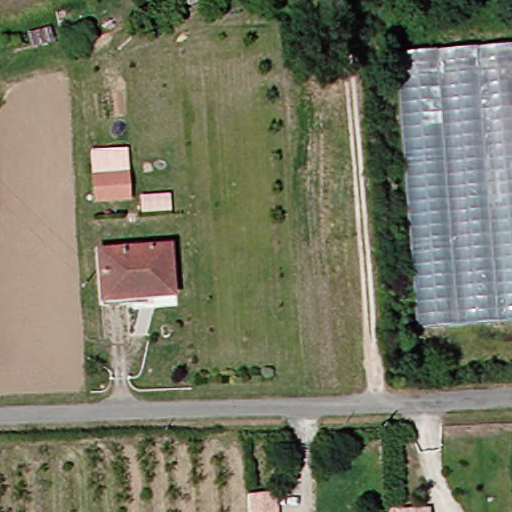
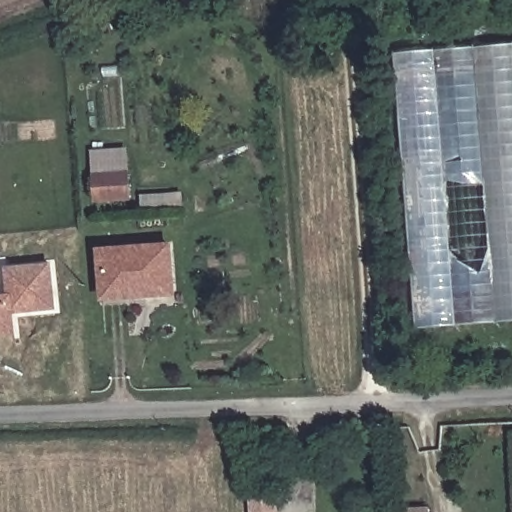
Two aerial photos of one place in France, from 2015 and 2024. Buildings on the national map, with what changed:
unchanged [(512,45),(512,326),(421,332),(400,54),(512,45)]
unchanged [(96,200),(94,178),(124,176),(125,198),(96,200)]
unchanged [(130,300),(106,301),(103,254),(171,249),(174,286),(175,296),(130,300)]
new [(8,295),(5,268),(48,264),(52,307),(10,312),(12,332),(0,333),(0,296),(8,295)]
new [(278,494),(278,512),(251,512),(250,495),(278,494)]
unchanged [(430,508),(430,512),(390,512),(390,511),(430,508)]

